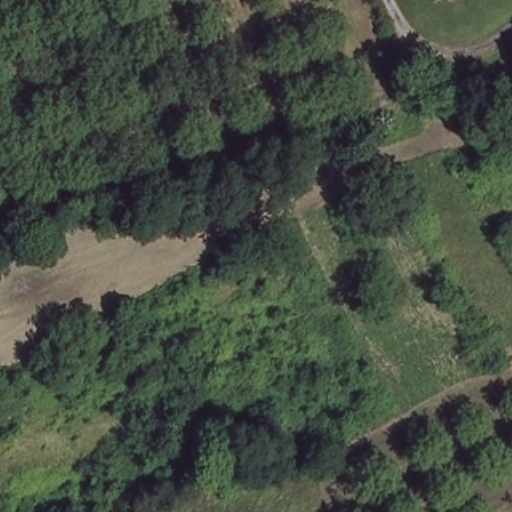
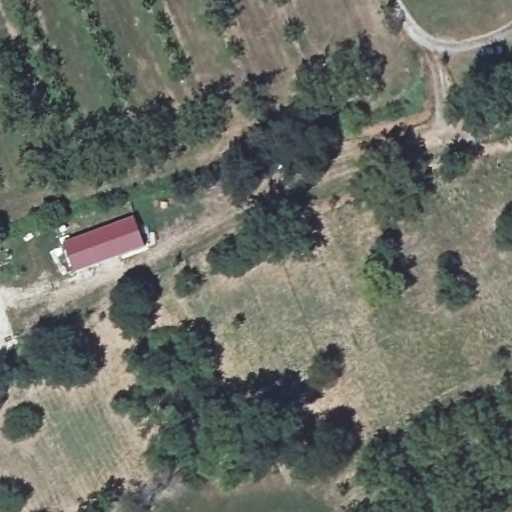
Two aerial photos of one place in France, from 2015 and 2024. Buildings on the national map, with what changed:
new [(144,248),(74,274),(62,243),(132,216),(144,248)]

